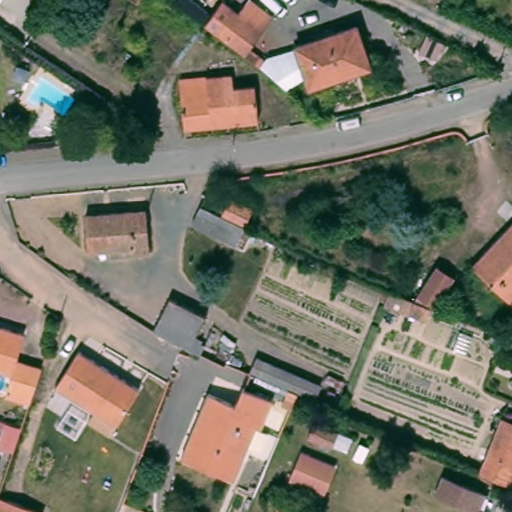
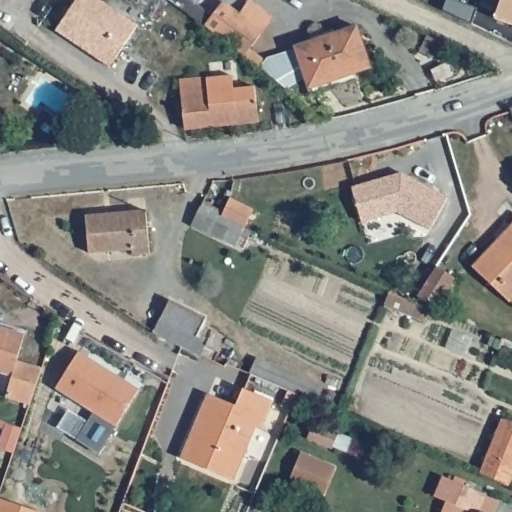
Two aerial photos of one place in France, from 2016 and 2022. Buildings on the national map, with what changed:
new [(137,26),(109,66),(56,30),(76,0),(99,0),(137,26)]
unchanged [(138,5),(132,0),(141,0),(138,5)]
new [(446,0),(462,0),(478,8),(472,24),(443,10),(446,0)]
new [(512,24),(495,18),(501,0),(512,0),(512,24)]
unchanged [(255,48),(267,59),(262,67),(249,59),(207,26),(227,2),(263,31),(255,48)]
unchanged [(358,31),(371,72),(311,89),(299,46),(358,31)]
unchanged [(186,129),(184,79),(232,75),(237,88),(257,86),(261,122),(186,129)]
new [(353,186),(402,172),(448,197),(431,229),(397,210),(363,220),(353,186)]
unchanged [(225,221),(233,200),(262,212),(251,233),(244,250),(195,228),(201,210),(225,221)]
unchanged [(149,210),(152,254),(129,255),(129,247),(87,250),(86,214),(149,210)]
unchanged [(512,220),(512,300),(473,270),(512,220)]
unchanged [(458,281),(443,310),(423,298),(438,270),(458,281)]
unchanged [(422,305),(417,317),(386,305),(392,291),(422,305)]
unchanged [(207,320),(191,351),(181,347),(153,335),(171,302),(207,320)]
unchanged [(7,397),(14,375),(0,371),(0,325),(27,333),(19,361),(47,369),(41,385),(34,405),(7,397)]
unchanged [(139,392),(114,427),(61,386),(86,353),(139,392)]
unchanged [(318,402),(252,375),(258,357),(325,385),(318,402)]
unchanged [(242,407),(251,385),(283,400),(272,425),(265,423),(238,480),(186,455),(214,394),(242,407)]
unchanged [(503,420),(512,423),(512,487),(481,475),(503,420)]
new [(322,494),(297,483),(288,480),(300,451),(309,455),(334,466),(322,494)]
unchanged [(485,512),(458,512),(438,504),(447,482),(491,500),(485,512)]
unchanged [(0,512),(0,504),(1,501),(29,512),(0,512)]

